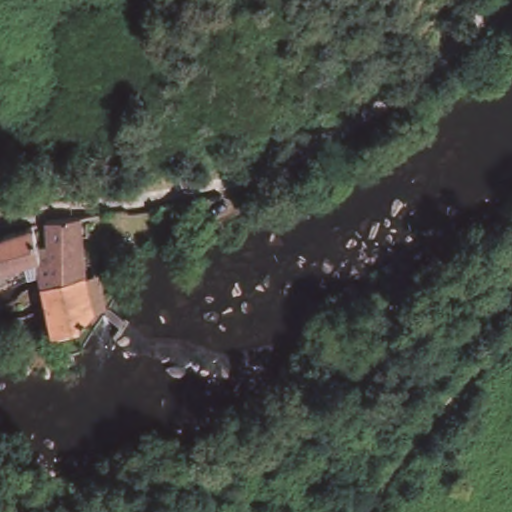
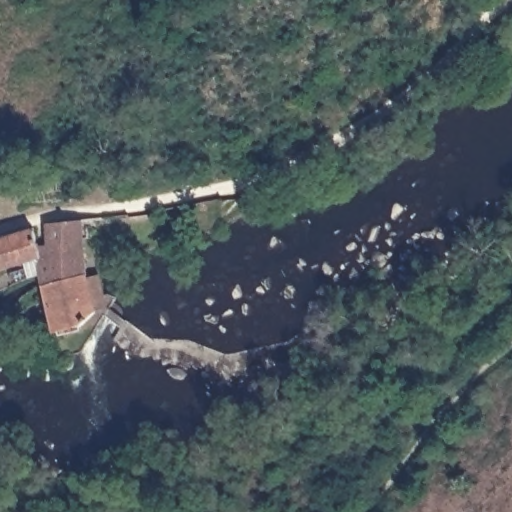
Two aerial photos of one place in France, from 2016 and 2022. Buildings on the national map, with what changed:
unchanged [(41,245),(49,243),(47,223),(82,219),(89,276),(97,274),(108,309),(87,319),(84,325),(55,332),(39,274),(29,277),(25,264),(0,271),(0,238),(35,229),(41,245)]

